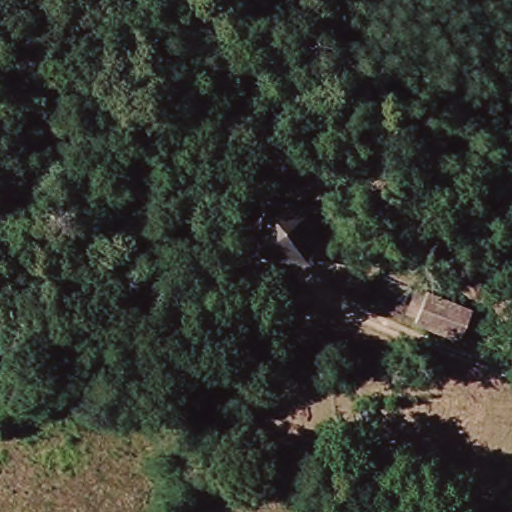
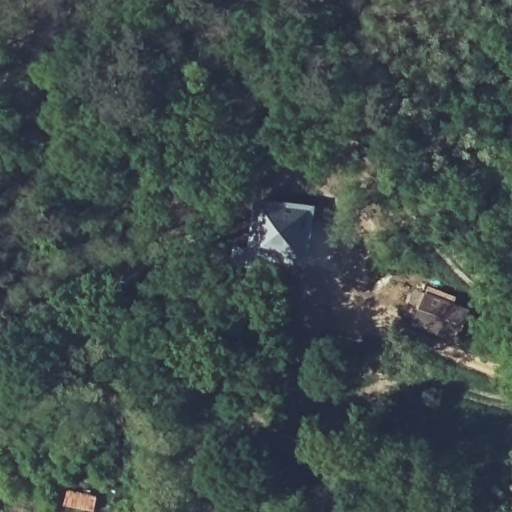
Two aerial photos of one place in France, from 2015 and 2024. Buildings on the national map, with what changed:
unchanged [(245,256),(254,217),(267,220),(272,200),(323,211),(312,262),(281,256),(279,264),(245,256)]
unchanged [(459,327),(451,342),(400,317),(406,304),(411,305),(420,290),(452,306),(466,312),(459,327)]

